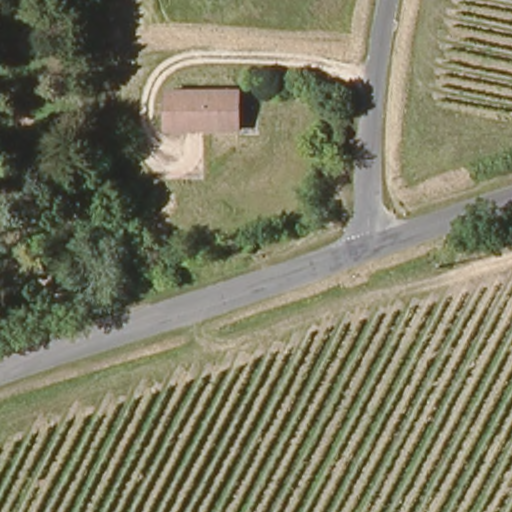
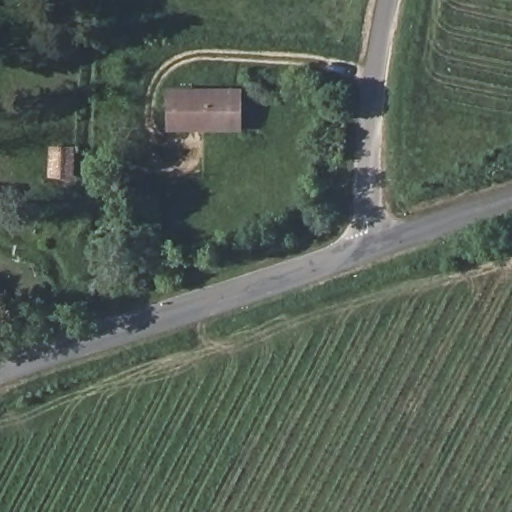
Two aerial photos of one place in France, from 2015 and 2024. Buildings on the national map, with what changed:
unchanged [(246,95),(239,137),(169,129),(175,89),(246,95)]
unchanged [(74,157),(71,184),(51,182),(52,155),(74,157)]
unchanged [(338,166),(337,175),(327,173),(327,165),(338,166)]

